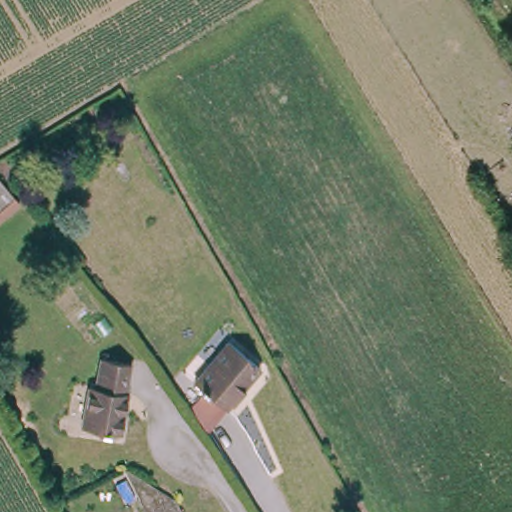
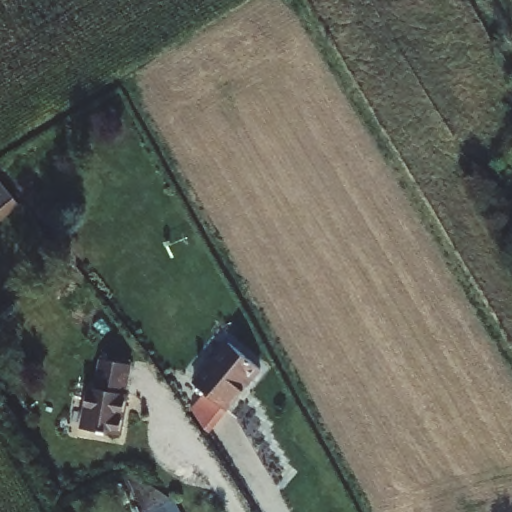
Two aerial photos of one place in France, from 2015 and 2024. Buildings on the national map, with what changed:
unchanged [(19,204),(0,220),(0,181),(19,204)]
unchanged [(191,408),(205,393),(194,384),(228,343),(261,369),(226,411),(208,432),(191,408)]
unchanged [(83,429),(91,389),(97,389),(103,361),(131,367),(125,394),(128,394),(120,436),(83,429)]
unchanged [(134,499),(122,505),(108,479),(122,472),(161,494),(170,502),(176,512),(140,512),(134,499)]

